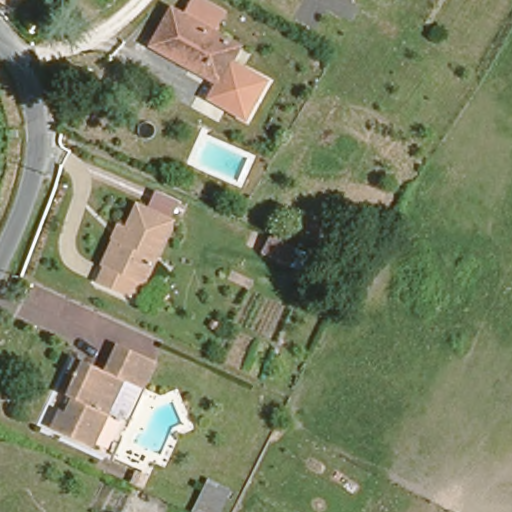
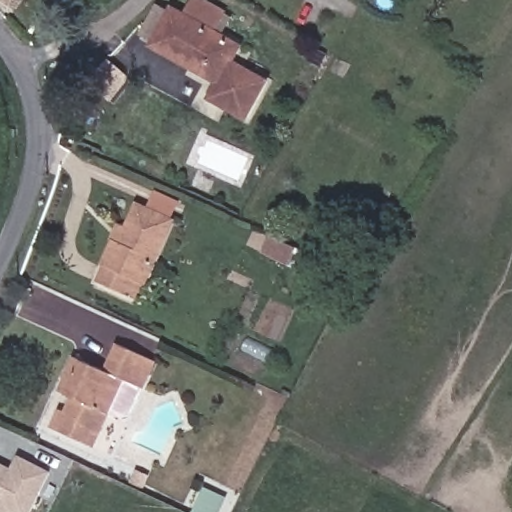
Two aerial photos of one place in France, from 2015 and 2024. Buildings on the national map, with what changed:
unchanged [(232,59),(224,80),(216,77),(151,52),(166,12),(181,17),(188,0),(191,0),(218,10),(211,30),(239,41),(232,59)]
unchanged [(273,80),(250,123),(204,100),(216,77),(224,80),(232,59),(273,80)]
unchanged [(175,220),(138,279),(130,274),(120,289),(98,274),(108,259),(106,257),(121,235),(117,232),(127,218),(131,220),(144,200),(175,220)]
unchanged [(317,280),(263,255),(274,234),(326,259),(317,280)]
unchanged [(93,440),(55,420),(62,406),(66,407),(73,393),(69,391),(62,387),(69,373),(80,352),(107,366),(121,341),(146,355),(153,359),(140,384),(133,380),(124,376),(93,440)]
new [(9,482),(20,459),(49,478),(32,512),(9,512),(0,507),(0,476),(9,482)]
new [(6,512),(0,512),(0,508),(6,512)]

